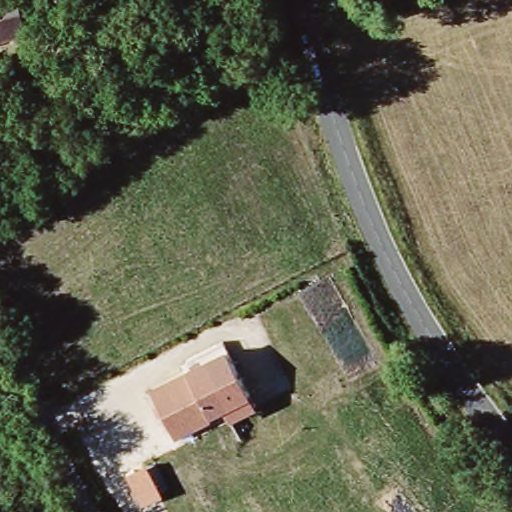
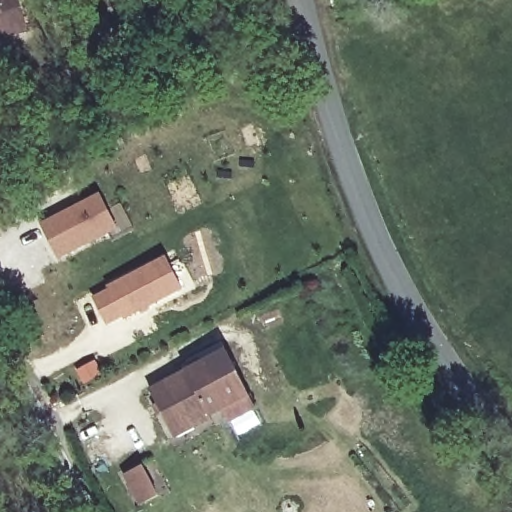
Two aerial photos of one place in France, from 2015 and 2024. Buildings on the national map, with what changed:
unchanged [(13,0),(19,30),(0,35),(0,0),(13,0)]
new [(103,195),(120,227),(62,257),(44,224),(103,195)]
new [(183,290),(124,318),(107,284),(166,256),(183,290)]
unchanged [(149,387),(187,368),(185,363),(225,345),(250,395),(256,408),(231,422),(224,407),(208,415),(210,420),(174,438),(149,387)]
new [(143,504),(138,492),(129,472),(137,468),(147,465),(149,470),(155,483),(161,496),(143,504)]

